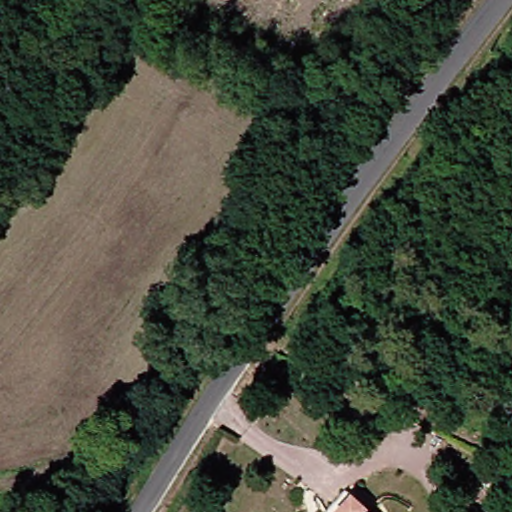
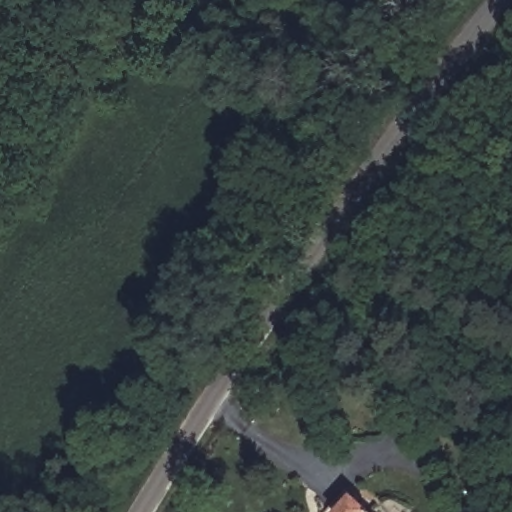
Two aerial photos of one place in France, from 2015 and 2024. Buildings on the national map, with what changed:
unchanged [(372,509),(374,512),(343,512),(358,496),(372,509)]

